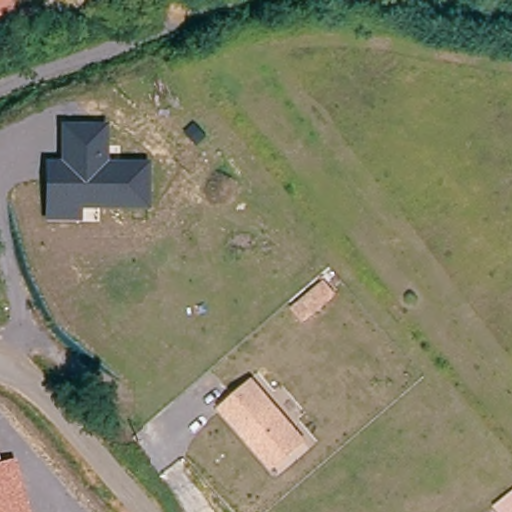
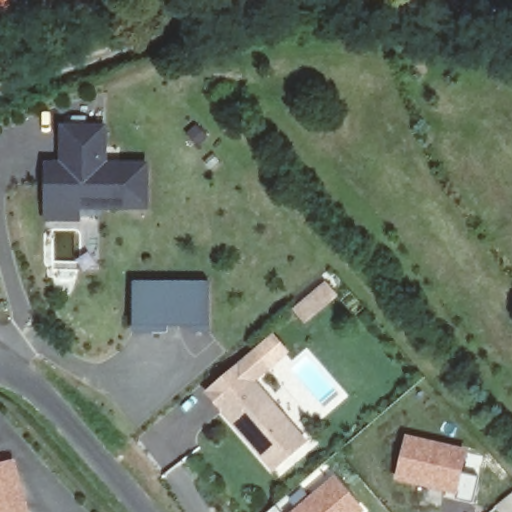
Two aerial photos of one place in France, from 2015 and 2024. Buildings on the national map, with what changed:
unchanged [(0,10),(0,0),(11,0),(12,4),(0,10)]
unchanged [(80,223),(45,221),(45,160),(59,161),(60,125),(107,125),(106,161),(148,162),(148,211),(81,211),(80,223)]
new [(321,285),(331,296),(302,321),(292,310),(321,285)]
new [(134,286),(207,286),(207,321),(133,321),(134,286)]
new [(269,368),(254,383),(225,407),(221,411),(205,393),(253,350),(269,368)]
unchanged [(225,409),(256,383),(305,441),(274,468),(259,450),(252,441),(225,409)]
new [(468,450),(463,472),(478,476),(472,502),(445,497),(445,492),(395,481),(405,435),(468,450)]
unchanged [(30,512),(0,512),(0,463),(14,460),(30,512)]
new [(363,512),(290,512),(333,475),(363,512)]
new [(512,494),(512,512),(487,512),(484,508),(507,488),(512,494)]
new [(276,506),(280,512),(269,512),(276,506)]

